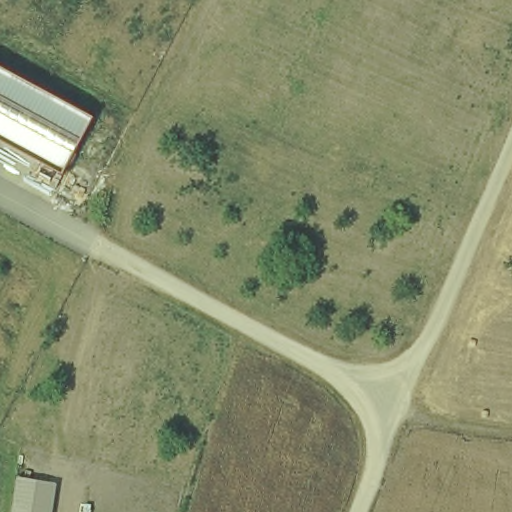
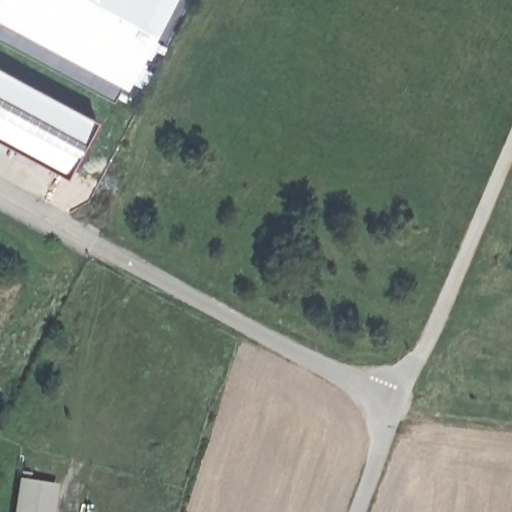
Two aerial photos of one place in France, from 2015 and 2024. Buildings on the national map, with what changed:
new [(129,88),(0,19),(0,0),(175,0),(129,88)]
unchanged [(0,141),(0,62),(98,116),(63,174),(0,141)]
unchanged [(17,512),(21,478),(59,483),(58,512),(17,512)]

